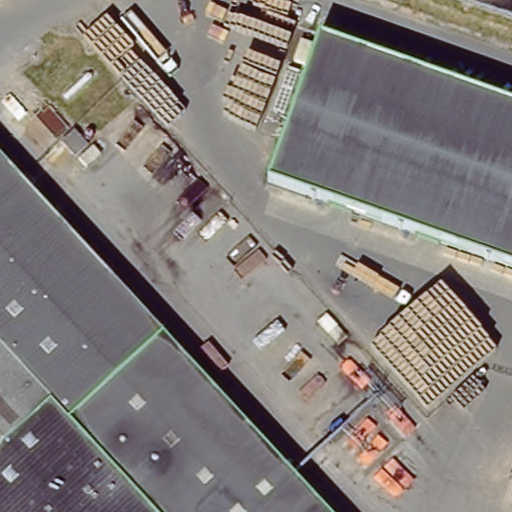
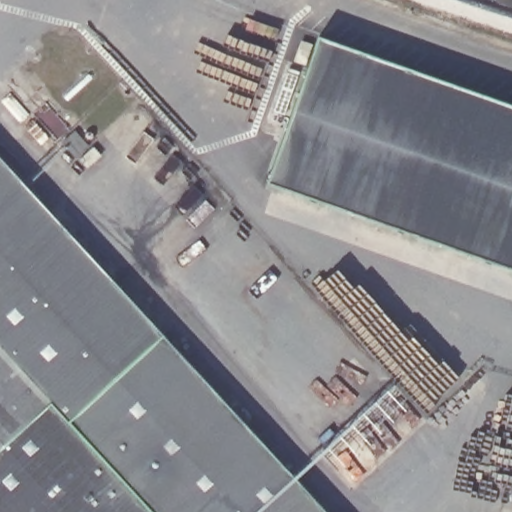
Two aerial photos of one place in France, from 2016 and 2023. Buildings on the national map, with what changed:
unchanged [(512,105),(512,269),(265,181),(316,35),(512,105)]
unchanged [(0,155),(328,512),(0,512),(0,155)]

